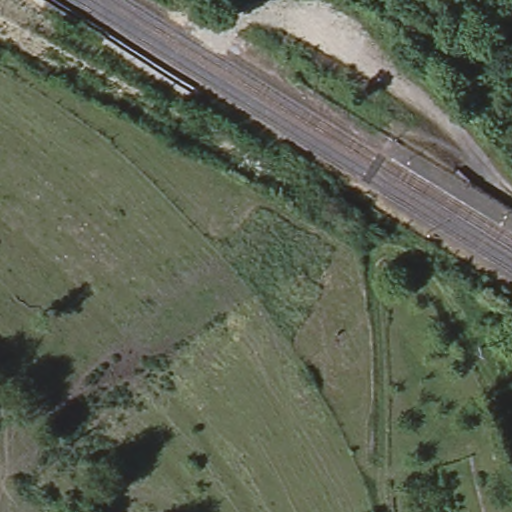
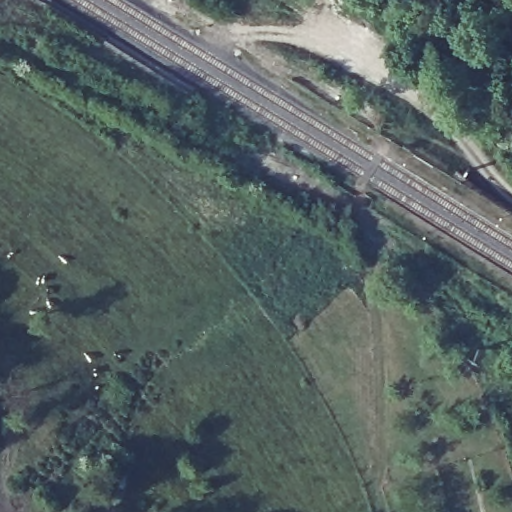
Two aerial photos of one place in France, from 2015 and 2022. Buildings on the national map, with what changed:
unchanged [(354,45),(371,57),(364,66),(348,53),(354,45)]
unchanged [(367,86),(404,110),(390,133),(353,110),(367,86)]
unchanged [(454,141),(439,164),(390,133),(404,110),(454,141)]

